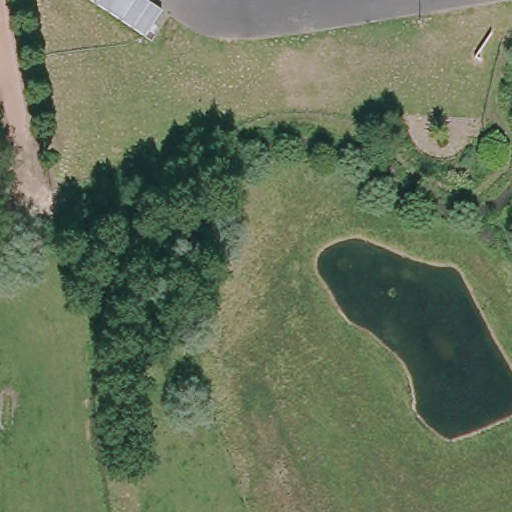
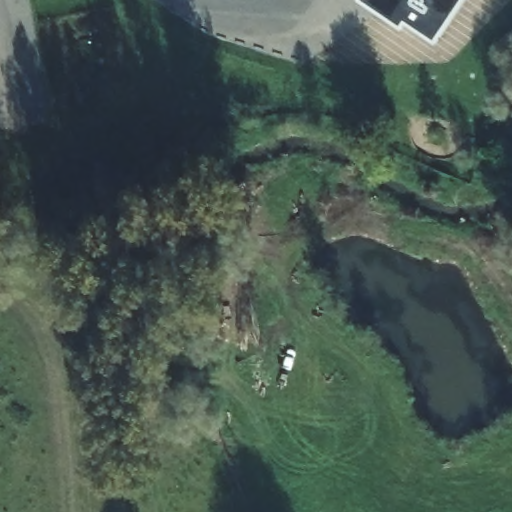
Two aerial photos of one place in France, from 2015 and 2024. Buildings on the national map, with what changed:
new [(436,40),(407,20),(402,26),(364,0),(463,0),(436,40)]

